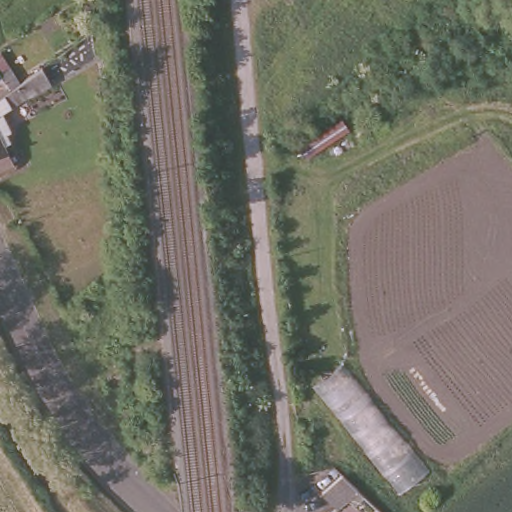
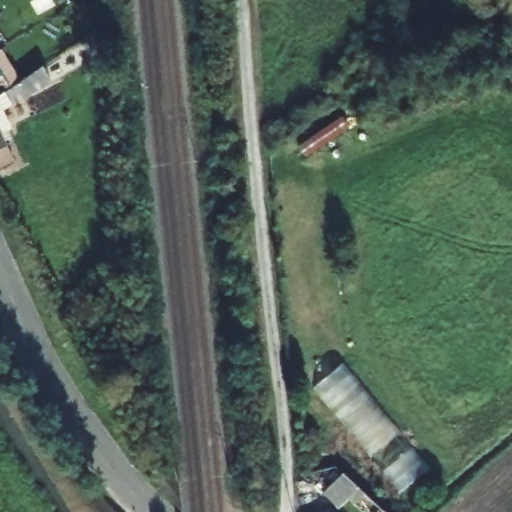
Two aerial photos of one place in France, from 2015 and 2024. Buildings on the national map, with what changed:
unchanged [(0,100),(0,54),(21,87),(0,100)]
unchanged [(42,75),(49,88),(0,118),(0,100),(21,87),(42,75)]
unchanged [(348,134),(301,161),(293,145),(339,118),(348,134)]
unchanged [(0,139),(0,119),(9,133),(0,139)]
unchanged [(2,170),(0,172),(0,140),(15,163),(2,170)]
unchanged [(345,362),(429,468),(398,494),(313,387),(345,362)]
unchanged [(339,472),(383,512),(354,512),(344,502),(334,512),(329,512),(315,499),(339,472)]

